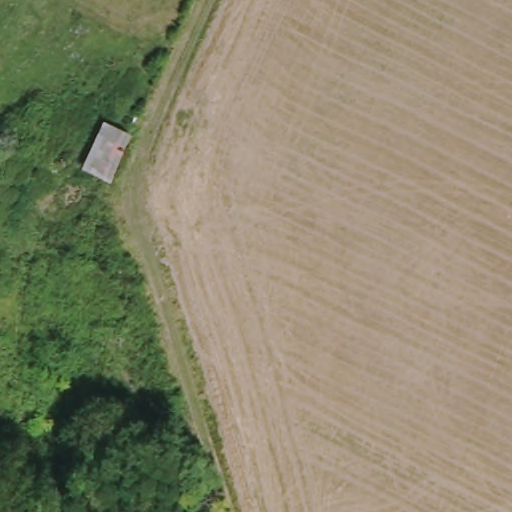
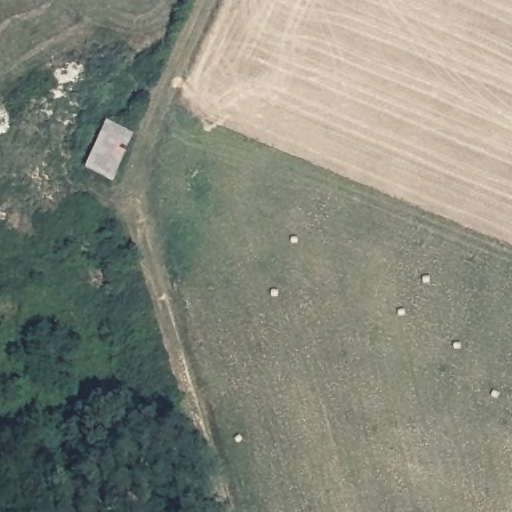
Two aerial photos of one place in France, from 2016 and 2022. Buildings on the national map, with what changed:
unchanged [(134,135),(113,185),(83,171),(104,121),(134,135)]

